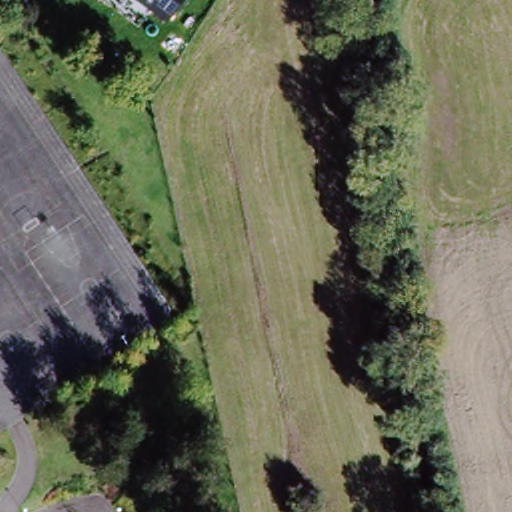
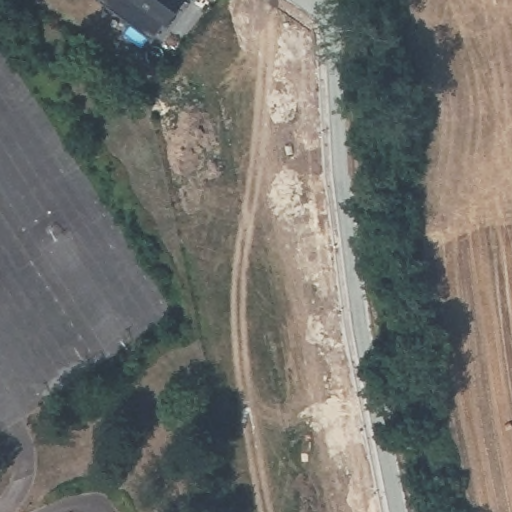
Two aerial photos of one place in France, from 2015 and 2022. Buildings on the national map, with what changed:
unchanged [(143,0),(188,0),(169,22),(143,0)]

